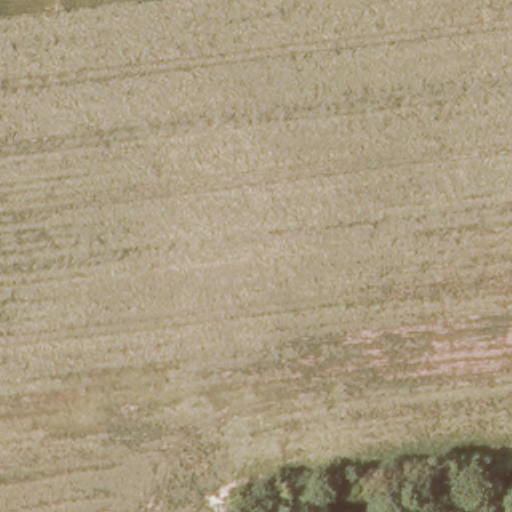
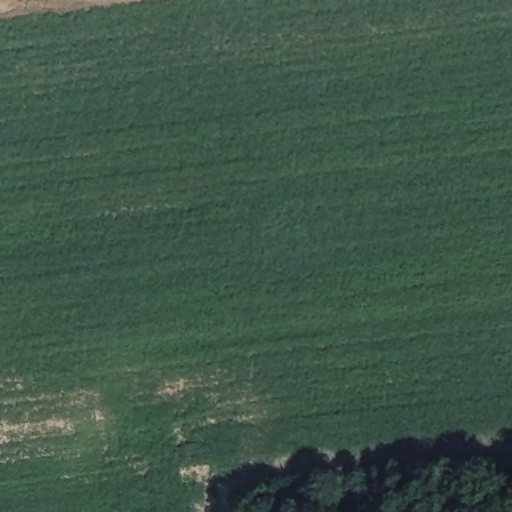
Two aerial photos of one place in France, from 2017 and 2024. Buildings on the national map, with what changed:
unchanged [(365,486),(368,510),(353,512),(314,512),(312,494),(365,486)]

